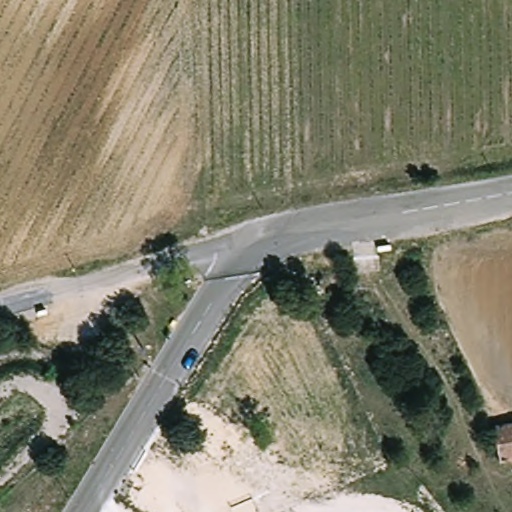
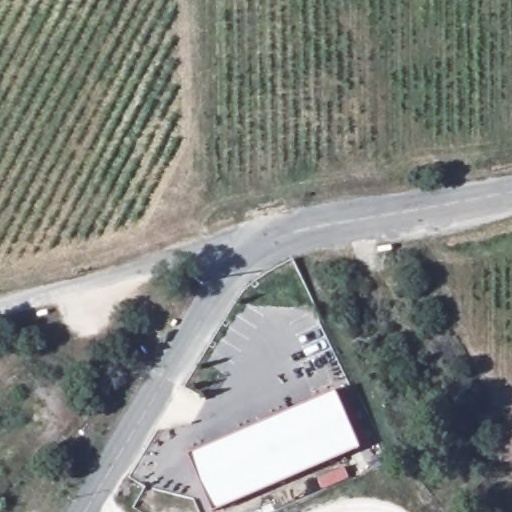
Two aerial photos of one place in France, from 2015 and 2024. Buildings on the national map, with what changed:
new [(357,447),(212,512),(187,456),(333,392),(357,447)]
unchanged [(497,432),(512,430),(512,457),(503,458),(497,432)]

